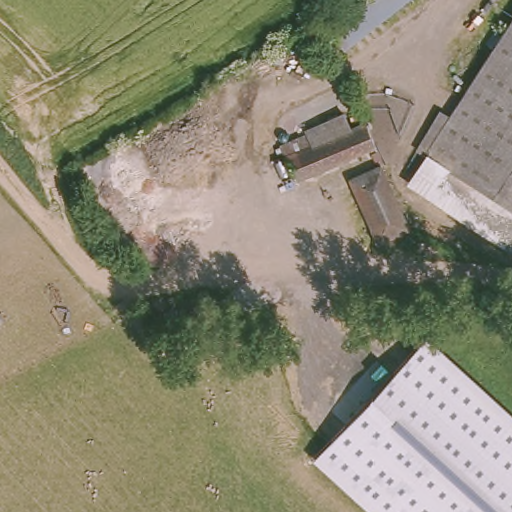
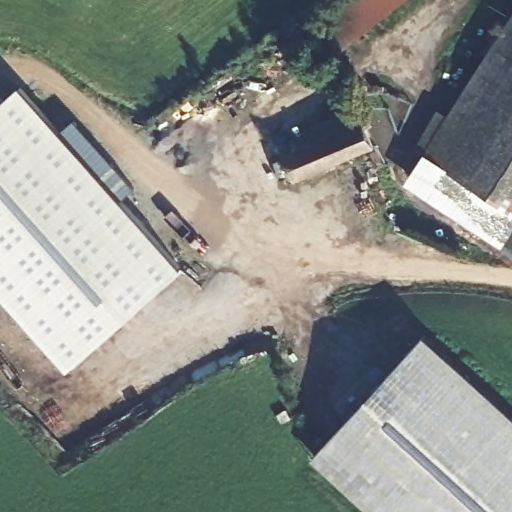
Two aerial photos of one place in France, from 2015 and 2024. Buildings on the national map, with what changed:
unchanged [(336,0),(403,0),(337,49),(312,17),(336,0)]
unchanged [(502,249),(405,185),(423,155),(512,19),(512,234),(502,249)]
new [(0,105),(22,86),(185,269),(68,373),(0,296),(0,105)]
unchanged [(360,154),(290,181),(277,148),(302,138),(300,132),(336,119),(343,135),(357,130),(369,151),(360,154)]
unchanged [(378,164),(402,222),(374,237),(346,179),(378,164)]
unchanged [(425,337),(512,417),(512,512),(367,512),(311,461),(425,337)]

